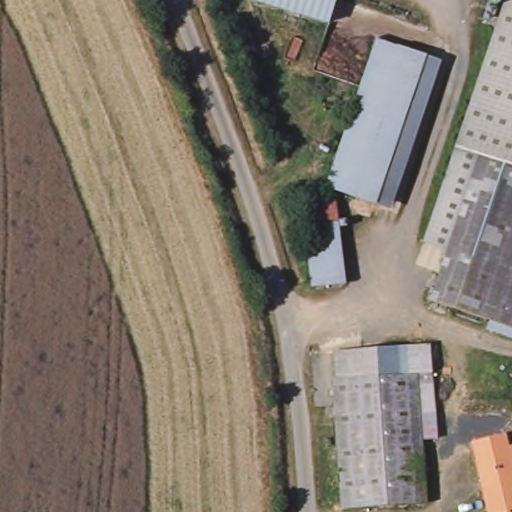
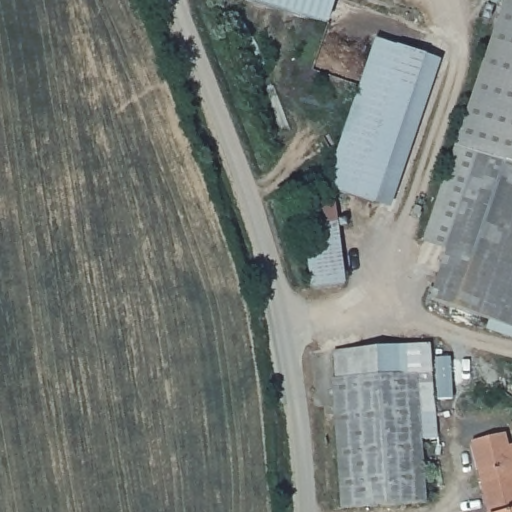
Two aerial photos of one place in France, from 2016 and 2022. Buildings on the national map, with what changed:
unchanged [(323,23),(250,0),(330,0),(323,23)]
unchanged [(419,237),(449,147),(499,0),(512,0),(512,328),(424,305),(442,246),(419,237)]
unchanged [(441,68),(393,204),(332,183),(379,47),(441,68)]
unchanged [(340,192),(350,280),(317,284),(307,195),(340,192)]
unchanged [(341,378),(340,350),(432,347),(434,374),(341,378)]
unchanged [(339,378),(341,378),(434,374),(435,412),(421,413),(425,499),(345,503),(339,378)]
unchanged [(512,429),(512,512),(494,512),(477,426),(508,419),(512,429)]

